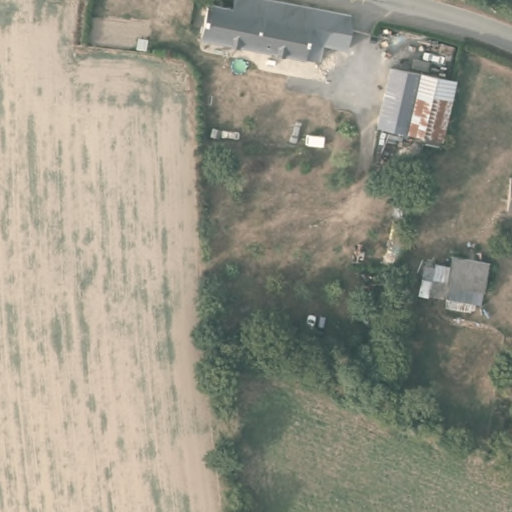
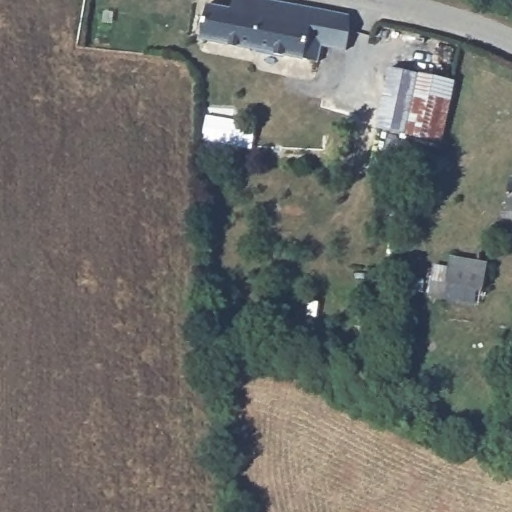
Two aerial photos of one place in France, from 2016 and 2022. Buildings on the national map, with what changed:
unchanged [(316,25),(327,27),(320,62),(202,37),(210,3),(237,7),(238,0),(294,0),(320,6),(316,25)]
unchanged [(367,139),(380,72),(415,80),(401,146),(367,139)]
unchanged [(401,146),(415,80),(450,87),(435,153),(401,146)]
unchanged [(456,282),(461,255),(495,261),(490,287),(456,283),(455,297),(439,296),(440,281),(456,282)]

